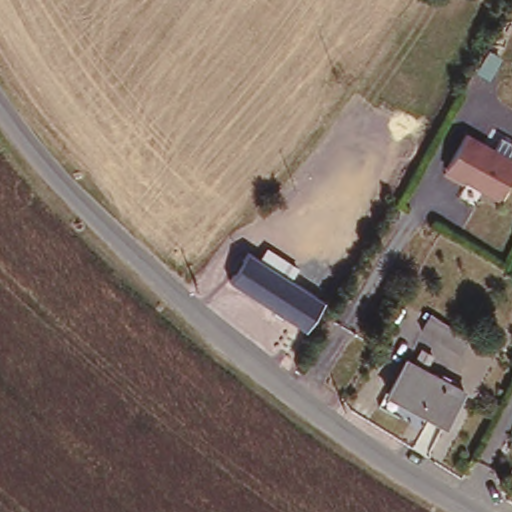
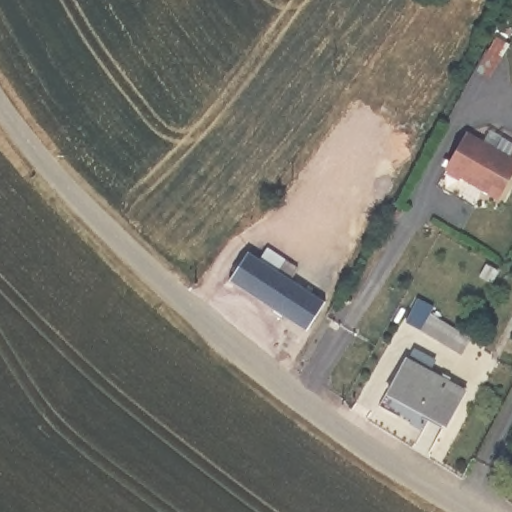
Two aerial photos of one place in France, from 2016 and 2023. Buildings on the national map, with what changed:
unchanged [(510,164),(491,196),(438,167),(457,134),(510,164)]
unchanged [(323,298),(306,326),(227,280),(249,251),(323,298)]
unchanged [(437,322),(442,310),(483,332),(477,343),(445,325),(437,322)]
unchanged [(467,385),(450,418),(388,387),(407,355),(467,385)]

